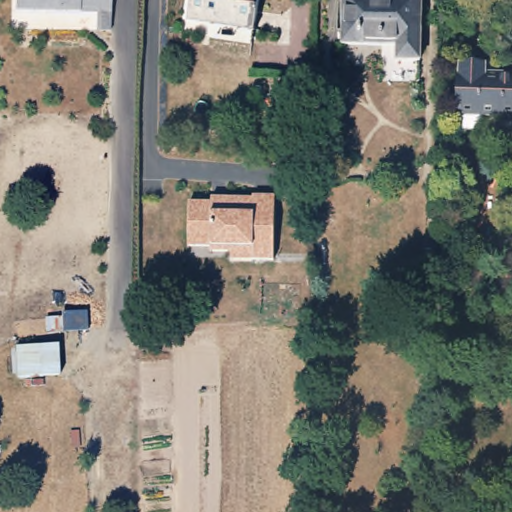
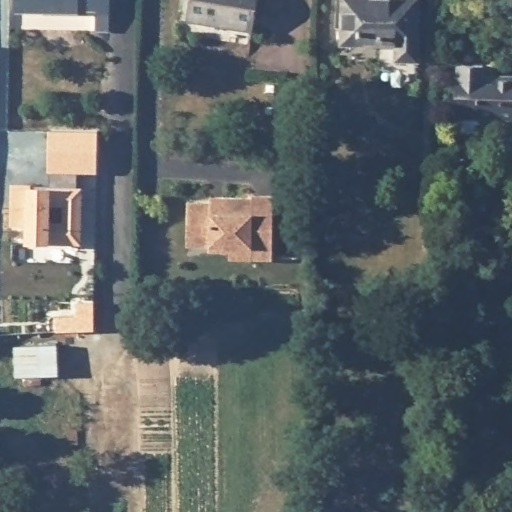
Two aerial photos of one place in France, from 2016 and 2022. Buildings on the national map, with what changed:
unchanged [(108,29),(94,29),(94,11),(11,10),(11,0),(108,0),(108,29)]
unchanged [(252,29),(187,18),(189,0),(256,0),(252,29)]
unchanged [(420,61),(397,61),(397,45),(344,45),(344,0),(420,0),(420,61)]
unchanged [(512,68),(512,125),(451,124),(453,66),(457,66),(457,56),(481,56),(481,67),(512,68)]
new [(25,243),(26,228),(11,227),(11,184),(32,184),(32,187),(46,187),(50,130),(98,131),(97,173),(77,173),(77,188),(84,188),(81,244),(25,243)]
unchanged [(232,253),(212,253),(212,247),(190,246),(190,202),(221,203),(226,198),(254,199),(254,196),(276,196),(275,260),(253,260),(232,260),(232,253)]
unchanged [(60,344),(60,378),(13,379),(14,346),(60,344)]

